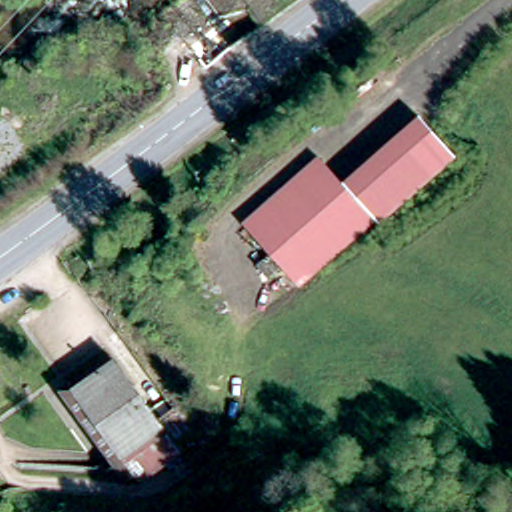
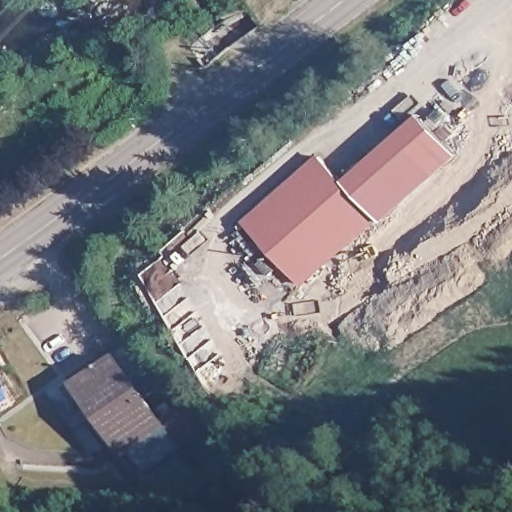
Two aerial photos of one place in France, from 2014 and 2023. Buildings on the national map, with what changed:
unchanged [(226,44),(202,61),(183,39),(208,21),(226,44)]
unchanged [(260,270),(252,258),(264,248),(240,217),(316,152),(338,179),(415,114),(449,152),(372,217),(368,212),(290,277),(275,260),(260,270)]
unchanged [(117,456),(107,461),(99,447),(107,443),(72,390),(112,361),(174,449),(133,478),(124,466),(117,456)]

